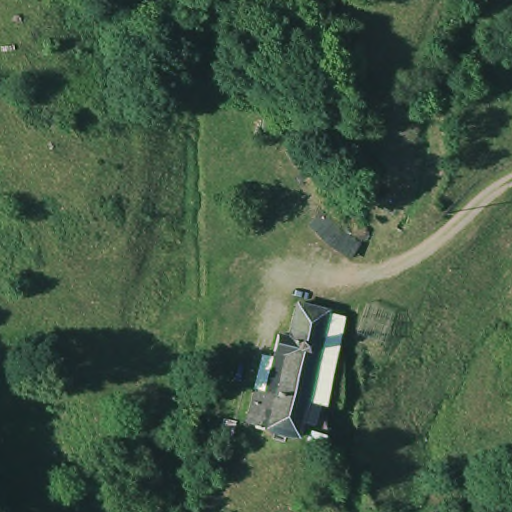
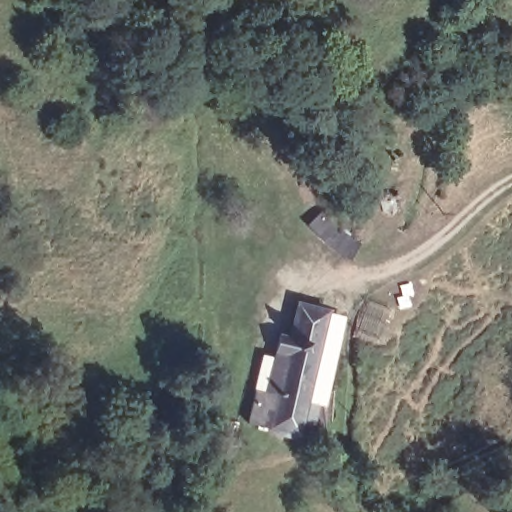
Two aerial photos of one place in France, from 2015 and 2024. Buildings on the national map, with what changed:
unchanged [(322,343),(291,336),(300,296),(334,303),(322,343)]
unchanged [(302,430),(270,424),(275,405),(286,356),(289,346),(279,344),(282,334),(291,336),(322,343),(302,430)]
unchanged [(246,419),(252,400),(255,387),(268,390),(276,354),(286,356),(275,405),(270,424),(246,419)]

